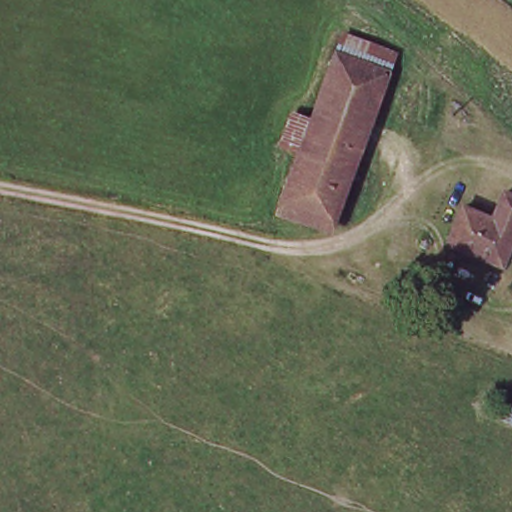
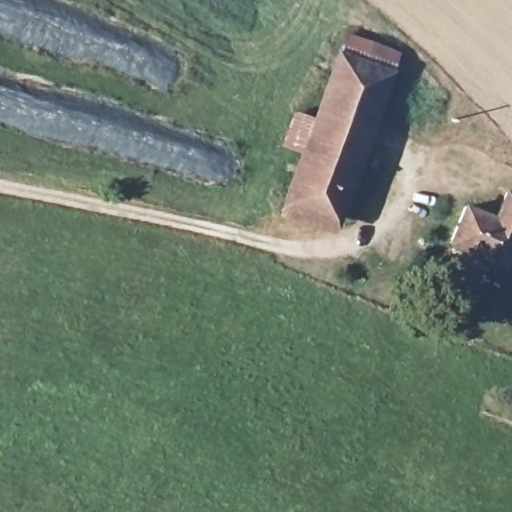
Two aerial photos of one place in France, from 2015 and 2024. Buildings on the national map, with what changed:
unchanged [(286,207),(305,154),(283,147),(295,113),(316,122),(340,57),(389,74),(382,95),(337,224),(286,207)]
unchanged [(512,248),(503,266),(453,243),(469,206),(494,218),(508,192),(512,194),(512,248)]
unchanged [(512,428),(486,415),(492,394),(512,405),(512,428)]

